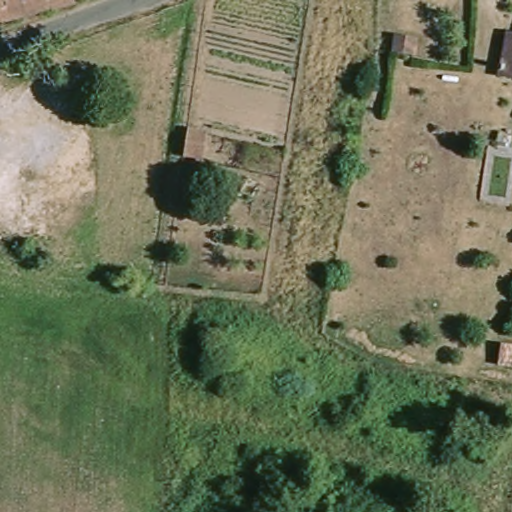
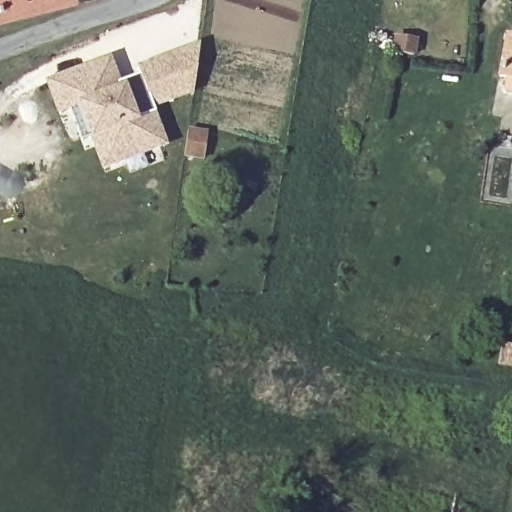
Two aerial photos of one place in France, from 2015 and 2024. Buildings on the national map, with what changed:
unchanged [(32,16),(0,23),(0,0),(67,0),(68,5),(32,16)]
unchanged [(492,66),(500,31),(512,34),(512,75),(491,71),(492,66)]
new [(120,82),(138,75),(136,70),(199,46),(194,91),(154,104),(168,146),(101,171),(89,136),(78,109),(56,115),(43,81),(110,56),(120,82)]
unchanged [(206,160),(187,157),(190,129),(210,131),(206,160)]
unchanged [(512,144),(512,163),(505,202),(476,197),(488,139),(512,144)]

